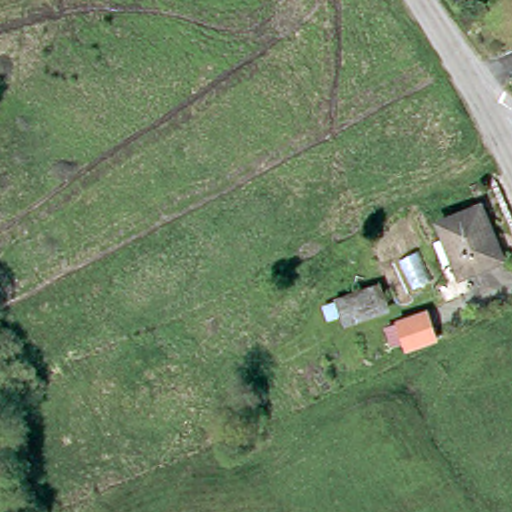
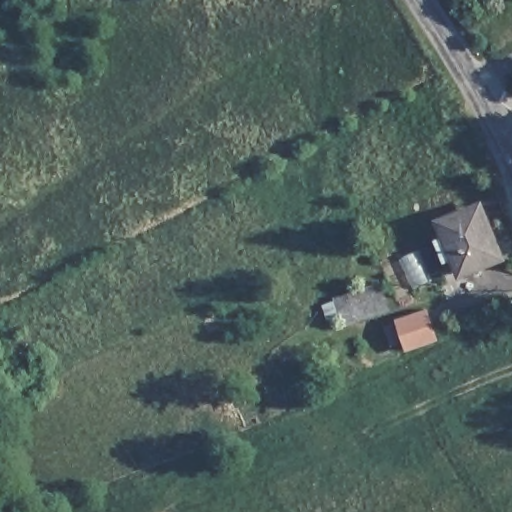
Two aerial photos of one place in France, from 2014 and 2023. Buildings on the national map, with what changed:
unchanged [(450,239),(443,225),(482,210),(502,260),(465,275),(460,264),(448,268),(438,244),(450,239)]
unchanged [(400,327),(426,316),(436,341),(410,351),(400,327)]
unchanged [(306,400),(297,403),(290,386),(300,383),(306,400)]

